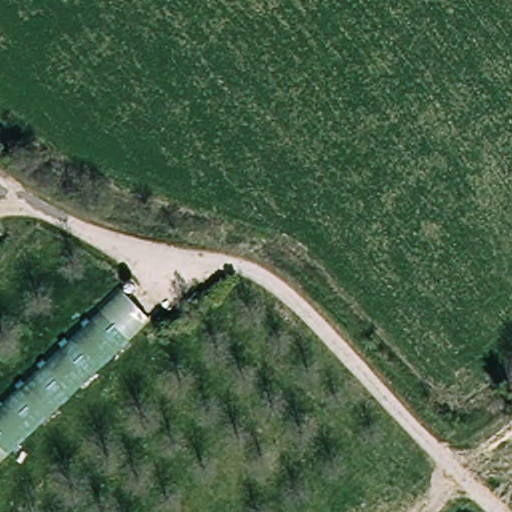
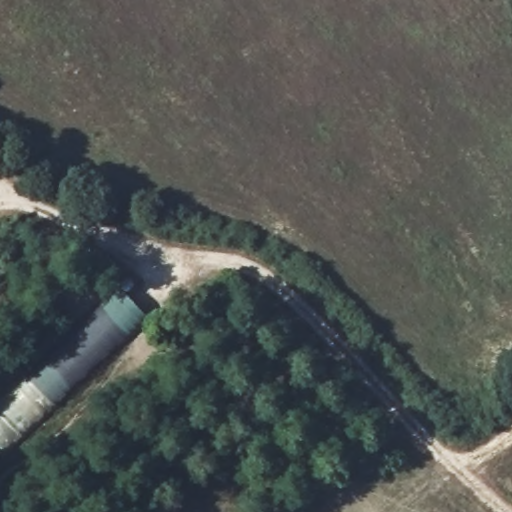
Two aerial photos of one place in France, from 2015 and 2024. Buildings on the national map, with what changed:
unchanged [(108,286),(145,326),(0,459),(0,390),(108,286)]

